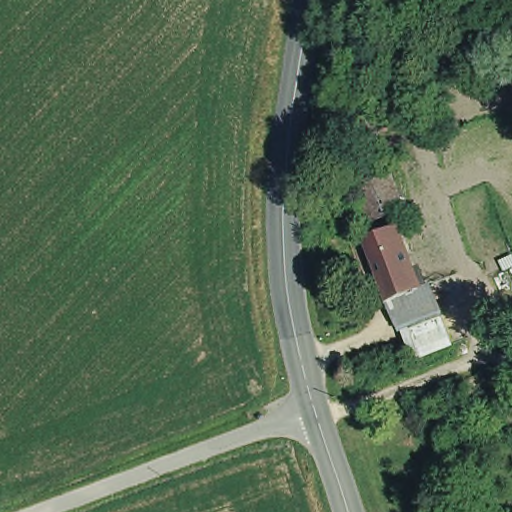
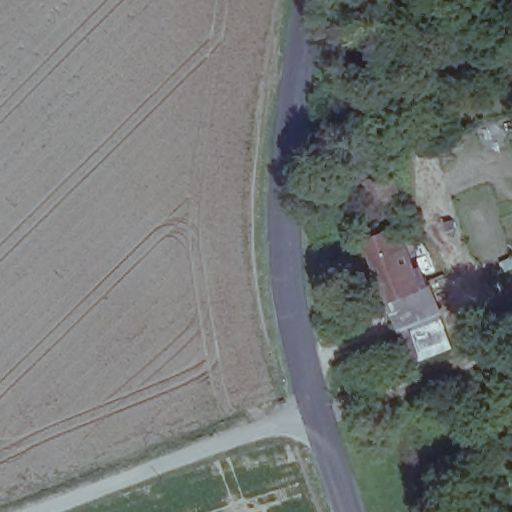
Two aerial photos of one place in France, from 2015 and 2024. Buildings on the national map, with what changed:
unchanged [(395,209),(356,220),(346,174),(384,166),(395,209)]
unchanged [(364,239),(395,226),(419,286),(389,299),(364,239)]
unchanged [(419,286),(424,296),(431,293),(451,343),(430,351),(414,358),(413,357),(389,299),(419,286)]

